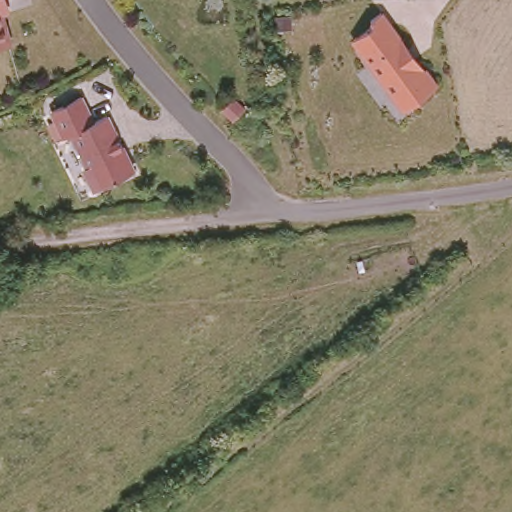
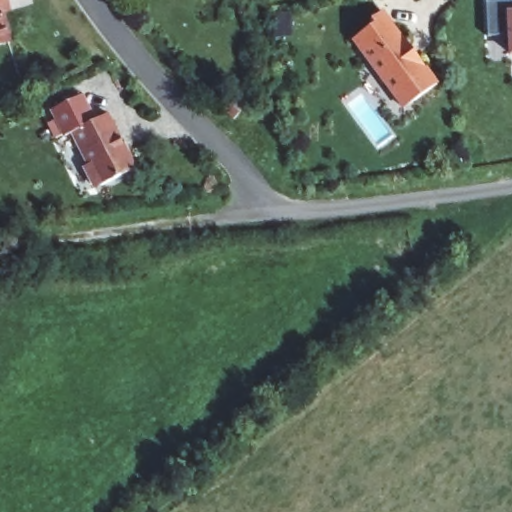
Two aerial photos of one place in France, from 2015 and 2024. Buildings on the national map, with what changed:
unchanged [(0,0),(12,0),(15,11),(9,14),(16,42),(0,46),(0,0)]
new [(512,51),(510,33),(489,34),(487,0),(512,0),(512,51)]
unchanged [(354,40),(374,24),(370,19),(381,11),(439,85),(405,107),(354,40)]
unchanged [(230,64),(242,74),(232,86),(220,76),(230,64)]
unchanged [(102,184),(96,182),(87,164),(92,162),(77,129),(69,133),(57,106),(72,99),(84,124),(97,118),(124,174),(102,184)]

